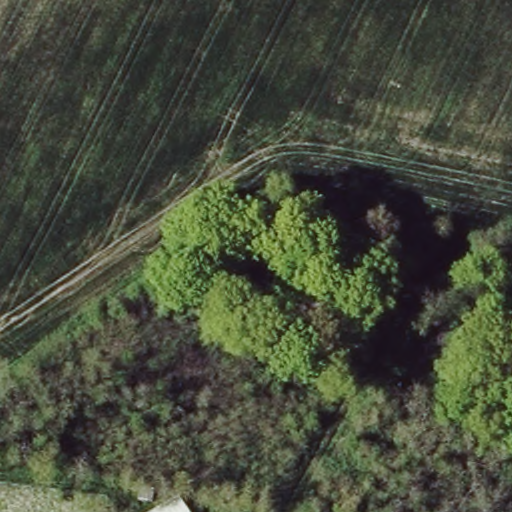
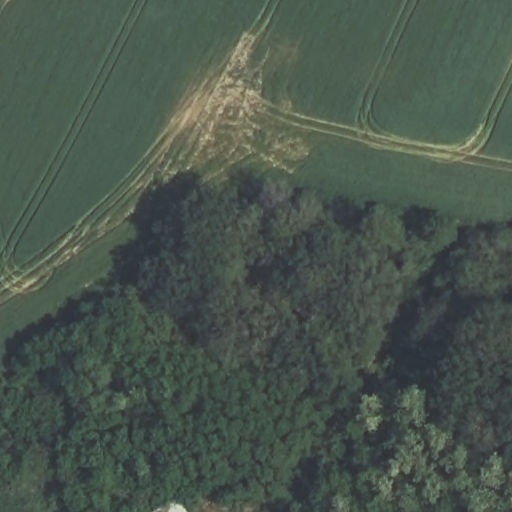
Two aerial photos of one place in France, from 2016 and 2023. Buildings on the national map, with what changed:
unchanged [(185,512),(160,512),(178,502),(185,512)]

